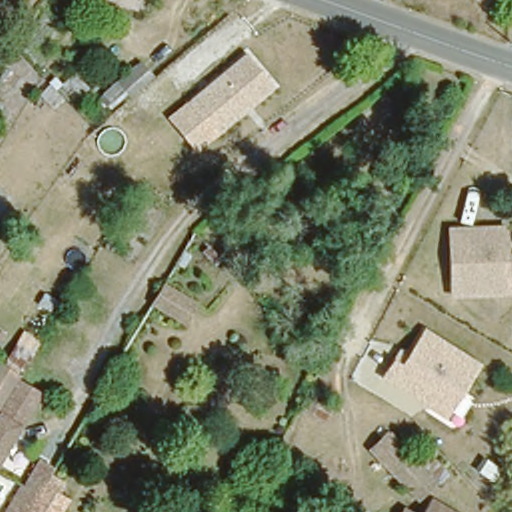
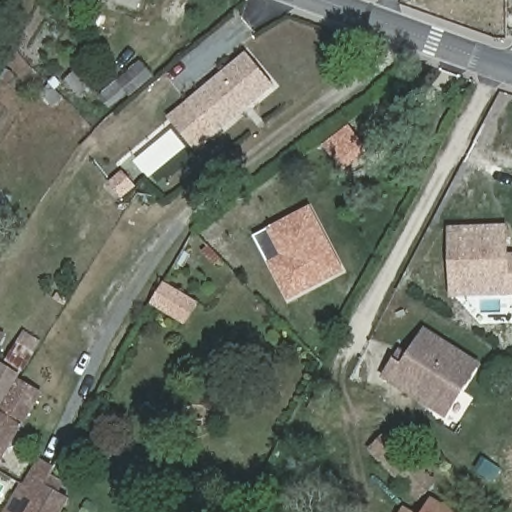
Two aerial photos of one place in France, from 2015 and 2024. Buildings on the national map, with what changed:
unchanged [(137,0),(135,6),(119,0),(137,0)]
unchanged [(273,89),(213,134),(188,100),(247,53),(273,89)]
unchanged [(122,101),(112,88),(132,72),(142,84),(122,101)]
new [(347,130),(351,134),(353,131),(368,150),(342,171),(323,148),(347,130)]
new [(257,243),(268,237),(268,229),(310,207),(341,274),(287,303),(257,243)]
unchanged [(450,228),(508,226),(509,253),(512,253),(512,296),(452,297),(450,228)]
unchanged [(194,302),(183,319),(152,299),(162,282),(194,302)]
unchanged [(482,364),(450,417),(383,379),(399,350),(407,355),(426,329),(482,364)]
unchanged [(20,366),(9,359),(17,346),(28,354),(20,366)]
unchanged [(17,373),(12,381),(0,374),(0,365),(2,362),(17,373)]
unchanged [(20,380),(42,392),(0,461),(0,411),(20,380)]
unchanged [(22,493),(55,438),(52,436),(67,407),(83,416),(51,471),(64,480),(57,490),(68,497),(59,512),(11,512),(22,493)]
unchanged [(416,497),(372,449),(388,434),(397,425),(415,443),(405,452),(432,481),(416,497)]
unchanged [(282,447),(301,458),(285,482),(280,479),(262,512),(244,512),(282,447)]
unchanged [(429,500),(449,512),(422,512),(429,500)]

